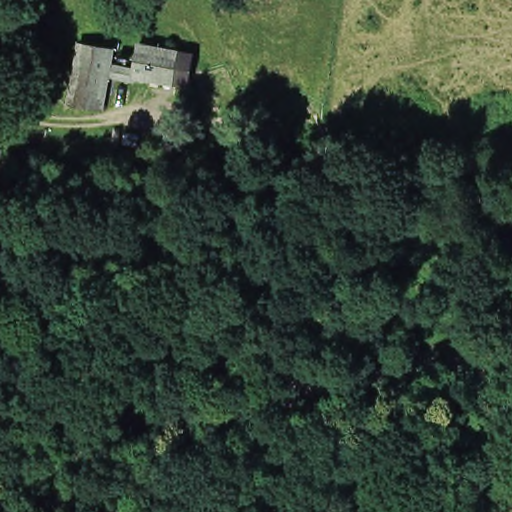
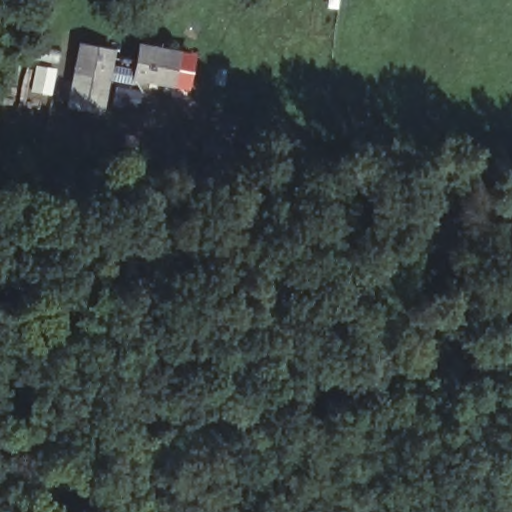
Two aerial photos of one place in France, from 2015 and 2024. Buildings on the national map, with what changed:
unchanged [(110,51),(107,68),(133,73),(138,46),(178,54),(171,86),(131,80),(131,84),(105,79),(99,113),(81,110),(65,106),(65,105),(78,45),(110,51)]

